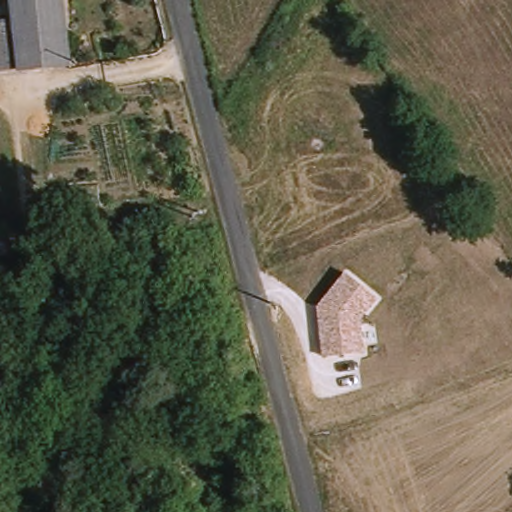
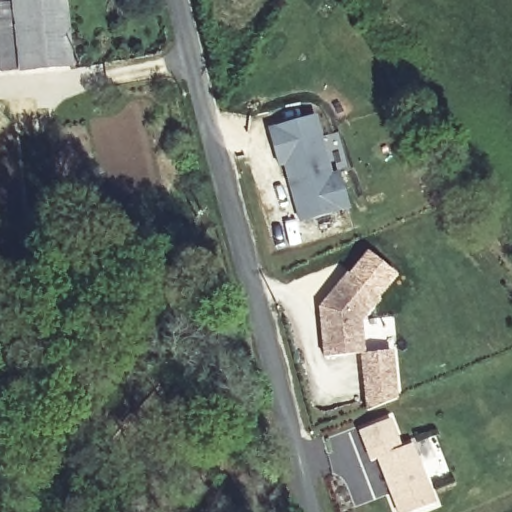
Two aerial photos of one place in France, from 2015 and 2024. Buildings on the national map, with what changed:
unchanged [(13,24),(10,0),(60,0),(67,70),(0,78),(0,25),(13,24)]
new [(299,224),(283,166),(278,167),(267,129),(318,116),(333,174),(339,173),(351,210),(299,224)]
unchanged [(378,299),(363,320),(366,350),(323,355),(318,309),(345,274),(378,299)]
new [(398,397),(366,409),(361,351),(366,350),(392,347),(398,397)]
new [(436,501),(410,512),(398,512),(378,459),(372,461),(359,432),(391,419),(405,447),(412,443),(436,501)]

